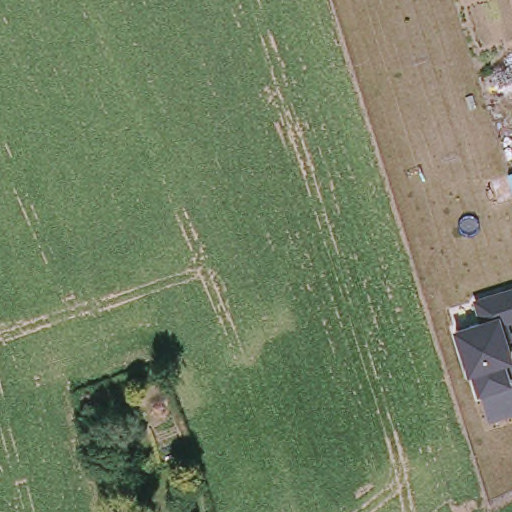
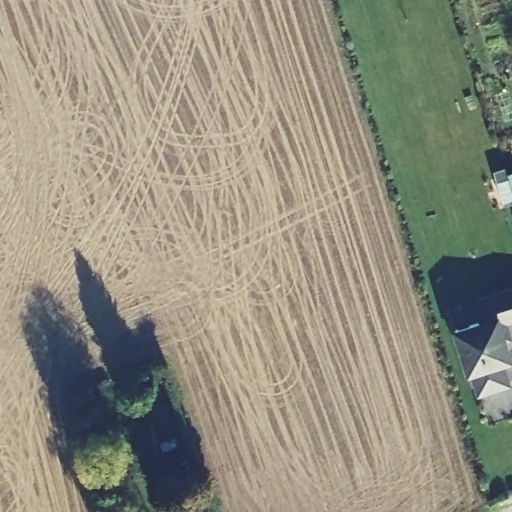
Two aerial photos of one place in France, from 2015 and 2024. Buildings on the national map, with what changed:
unchanged [(512,200),(504,175),(512,173),(512,200)]
unchanged [(512,315),(502,318),(512,354),(512,361),(503,364),(509,384),(477,393),(470,374),(467,375),(452,327),(480,318),(473,297),(512,284),(512,315)]

